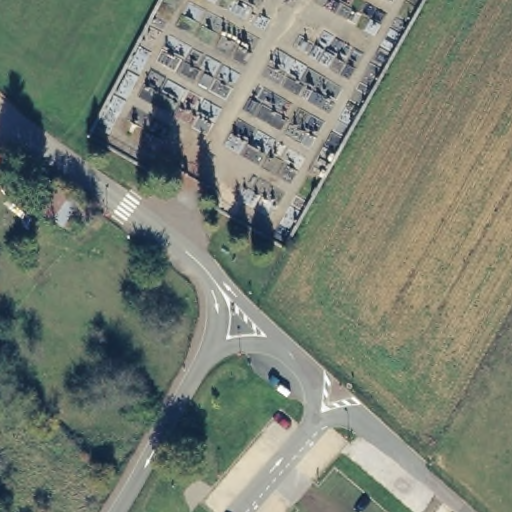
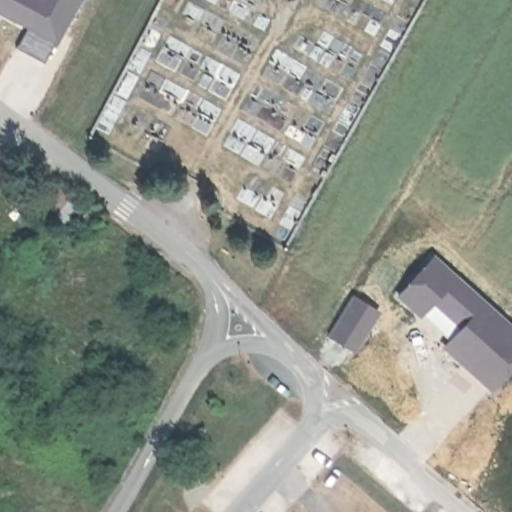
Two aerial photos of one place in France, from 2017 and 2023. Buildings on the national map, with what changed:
new [(18,21),(0,11),(0,0),(78,0),(47,57),(44,62),(16,47),(30,21),(21,16),(18,21)]
unchanged [(77,237),(25,207),(41,178),(92,211),(77,237)]
new [(433,257),(512,328),(512,361),(496,379),(468,356),(465,361),(445,343),(462,325),(440,305),(435,309),(429,303),(420,312),(400,294),(433,257)]
unchanged [(223,356),(232,349),(240,357),(230,364),(223,356)]

